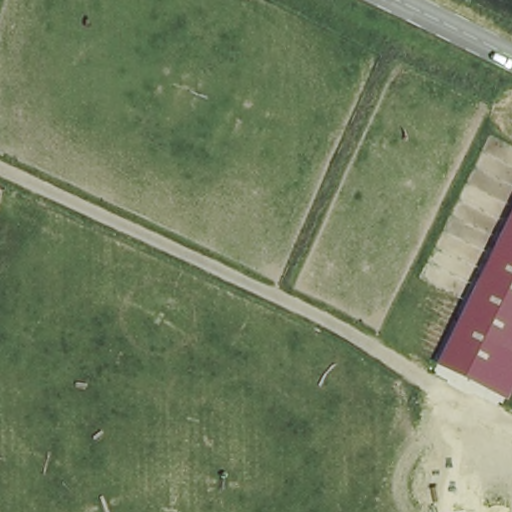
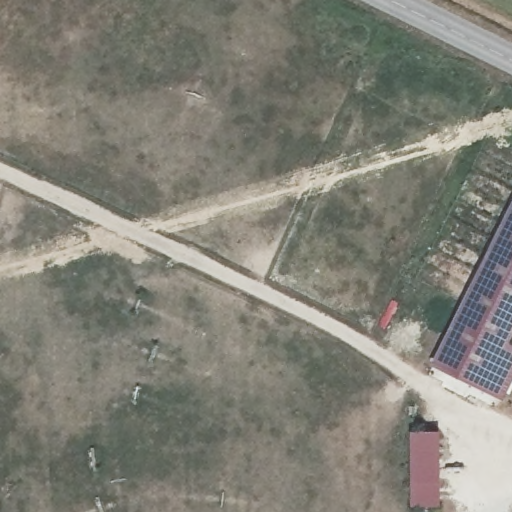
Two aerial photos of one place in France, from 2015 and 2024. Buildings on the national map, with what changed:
unchanged [(508,343),(512,346),(512,381),(503,401),(431,365),(512,201),(512,334),(508,343)]
new [(409,432),(438,431),(441,506),(412,507),(409,432)]

